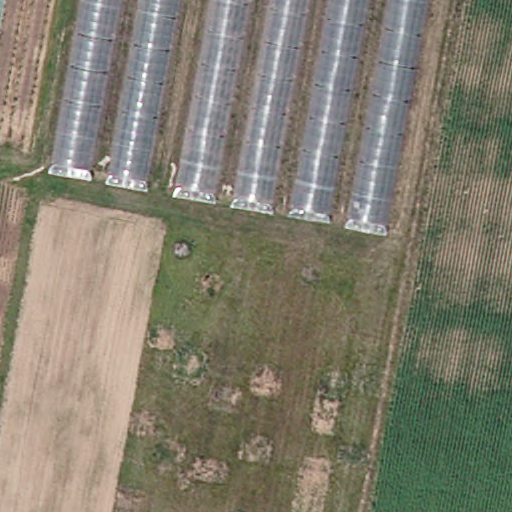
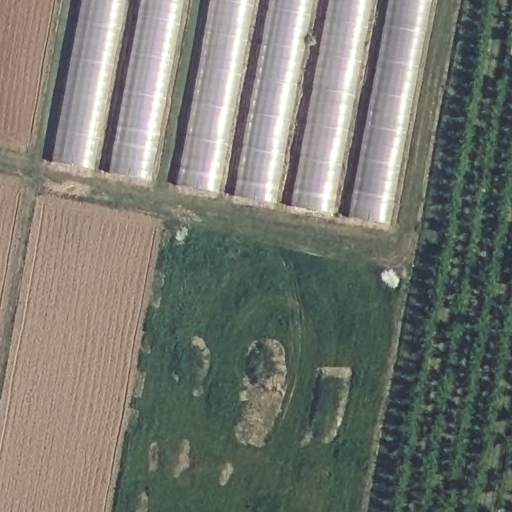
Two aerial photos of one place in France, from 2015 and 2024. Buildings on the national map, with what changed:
unchanged [(54,171),(86,0),(122,0),(90,177),(54,171)]
unchanged [(109,180),(146,0),(180,0),(148,187),(109,180)]
unchanged [(173,191),(210,0),(247,0),(213,200),(173,191)]
unchanged [(232,201),(270,0),(306,0),(271,207),(232,201)]
unchanged [(291,215),(330,0),(366,0),(329,220),(291,215)]
unchanged [(351,223),(389,0),(425,0),(385,226),(351,223)]

